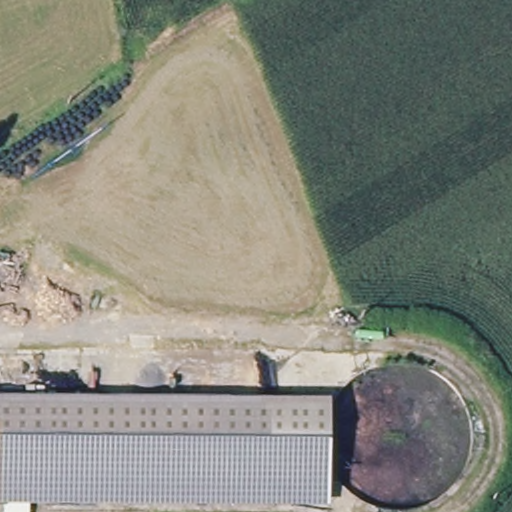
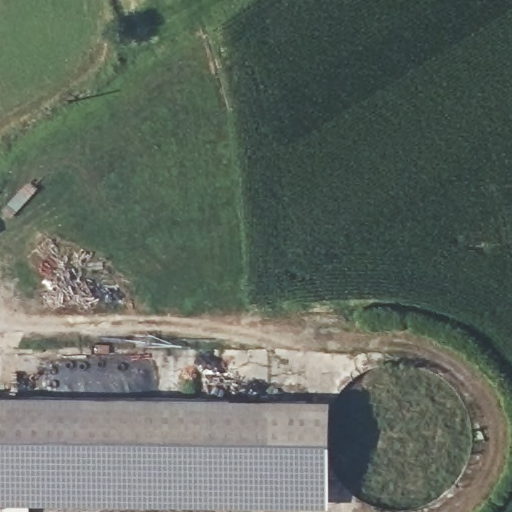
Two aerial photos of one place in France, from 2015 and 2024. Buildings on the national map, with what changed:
unchanged [(335,485),(0,479),(0,396),(336,401),(335,485)]
unchanged [(334,495),(334,507),(304,507),(0,502),(0,480),(335,485),(334,495)]

